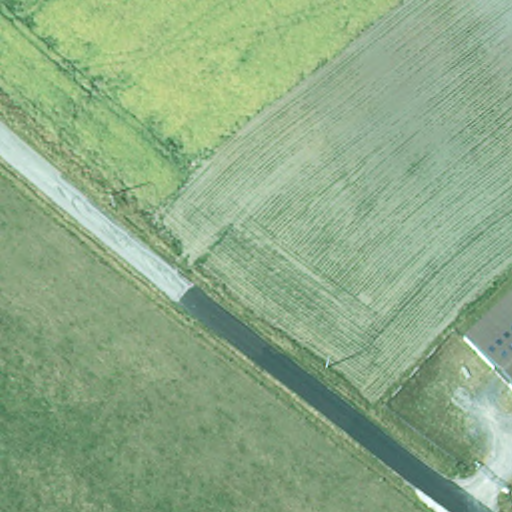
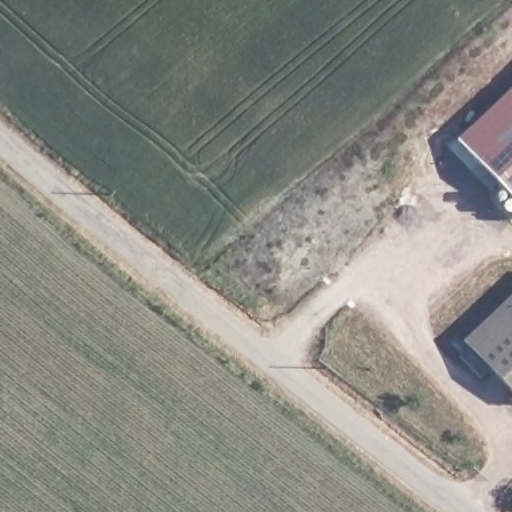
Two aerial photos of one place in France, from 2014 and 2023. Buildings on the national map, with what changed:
new [(460,139),(512,89),(512,195),(460,139)]
unchanged [(462,337),(512,293),(512,394),(462,337)]

